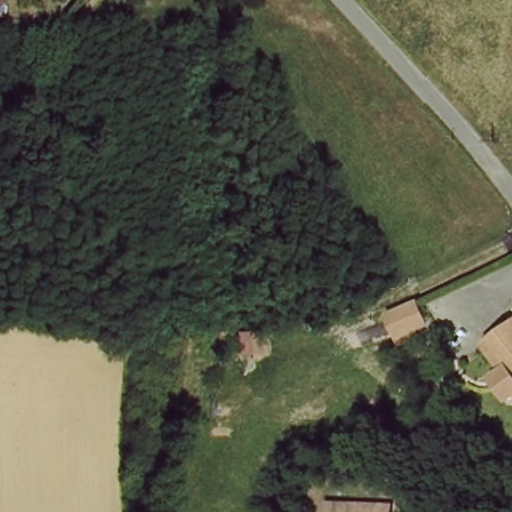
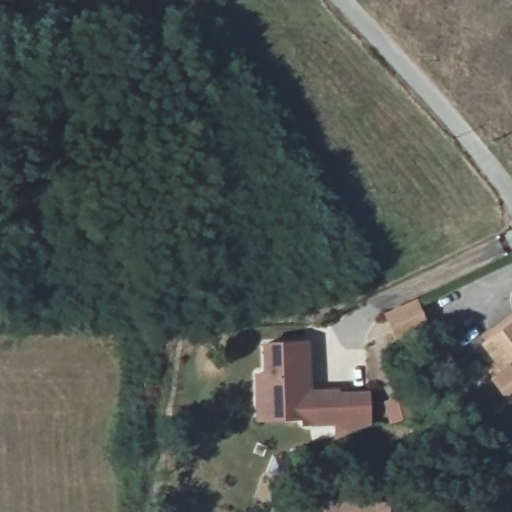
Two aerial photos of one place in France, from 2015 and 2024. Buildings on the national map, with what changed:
unchanged [(390,331),(411,320),(416,317),(428,338),(425,340),(402,352),(390,331)]
unchanged [(512,321),(512,391),(499,373),(479,346),(512,321)]
new [(309,342),(310,390),(371,391),(372,426),(302,427),(302,421),(255,423),(253,373),(262,373),(261,344),(309,342)]
unchanged [(383,511),(382,512),(326,512),(327,506),(383,511)]

